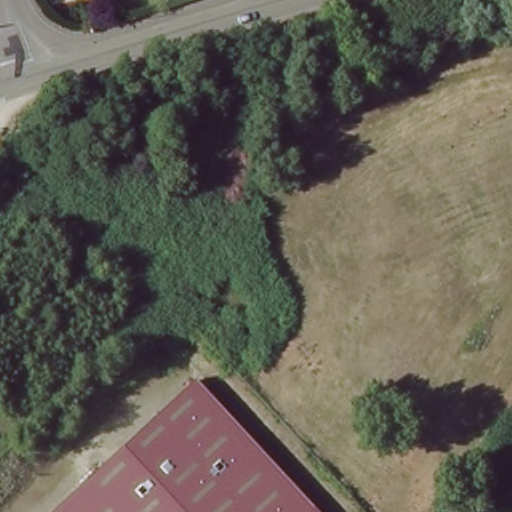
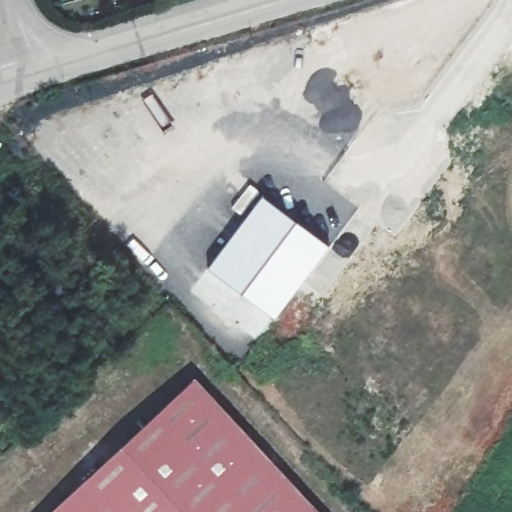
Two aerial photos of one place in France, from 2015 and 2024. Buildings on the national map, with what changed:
new [(260,194),(329,245),(273,318),(207,268),(260,194)]
unchanged [(198,385),(317,512),(63,512),(198,385)]

